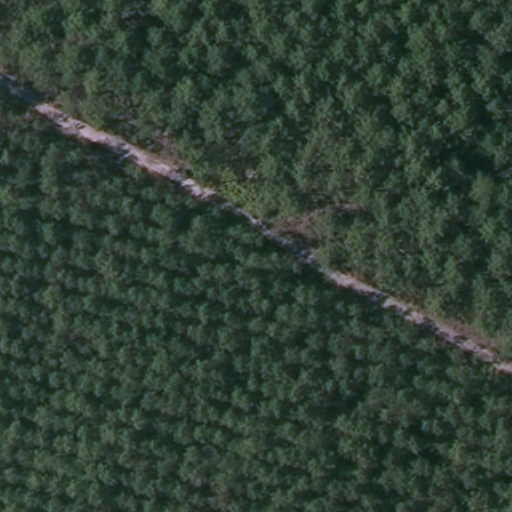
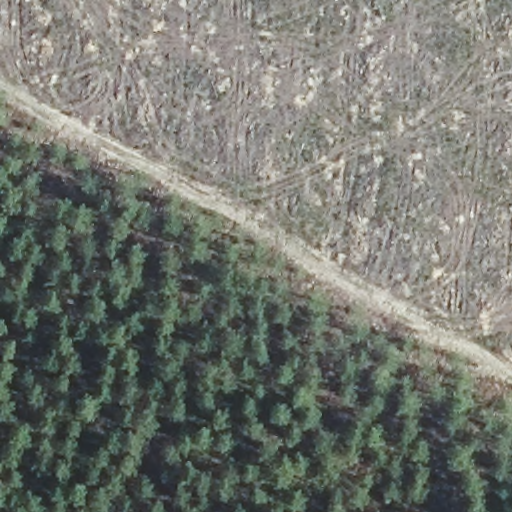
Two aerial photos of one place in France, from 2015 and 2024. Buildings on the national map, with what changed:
[]

